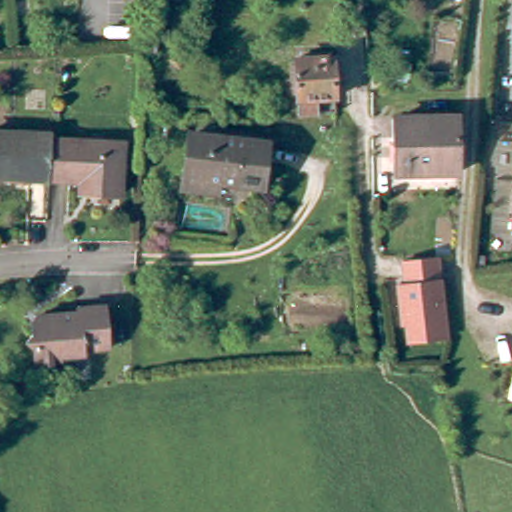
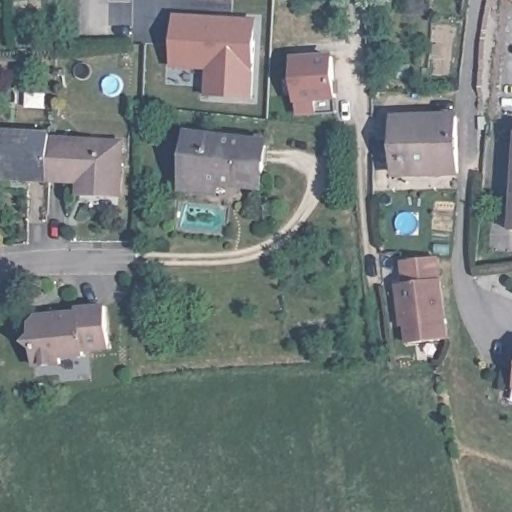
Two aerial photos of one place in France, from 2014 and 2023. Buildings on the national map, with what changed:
new [(171,69),(175,15),(258,19),(255,100),(205,97),(207,71),(171,69)]
unchanged [(280,64),(291,63),(290,44),(328,42),(332,97),(295,100),(293,80),(281,81),(280,64)]
unchanged [(391,159),(390,114),(453,112),(454,167),(430,168),(392,169),(391,159)]
unchanged [(204,181),(180,178),(185,125),(262,134),(256,177),(215,172),(214,182),(204,181)]
unchanged [(0,172),(0,129),(47,132),(47,135),(45,174),(0,172)]
unchanged [(78,176),(73,176),(45,174),(47,135),(118,139),(115,190),(86,188),(77,187),(78,176)]
unchanged [(512,224),(512,231),(511,231),(512,224)]
unchanged [(440,260),(449,337),(409,342),(406,325),(400,326),(395,289),(402,288),(400,263),(440,260)]
unchanged [(110,343),(84,346),(85,351),(61,353),(61,358),(36,361),(35,344),(27,337),(33,330),(32,318),(38,312),(79,307),(79,304),(106,302),(110,343)]
unchanged [(512,386),(511,386),(512,383),(512,386)]

